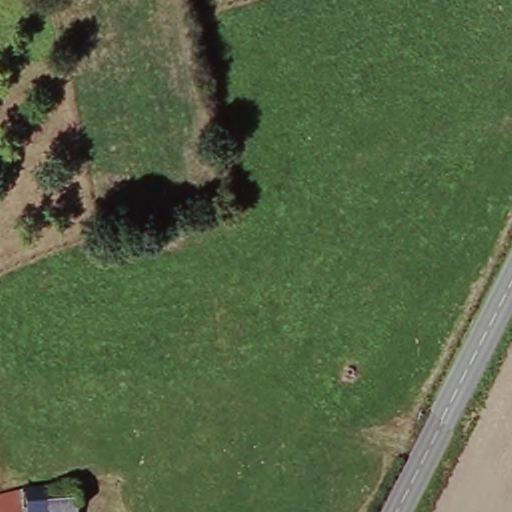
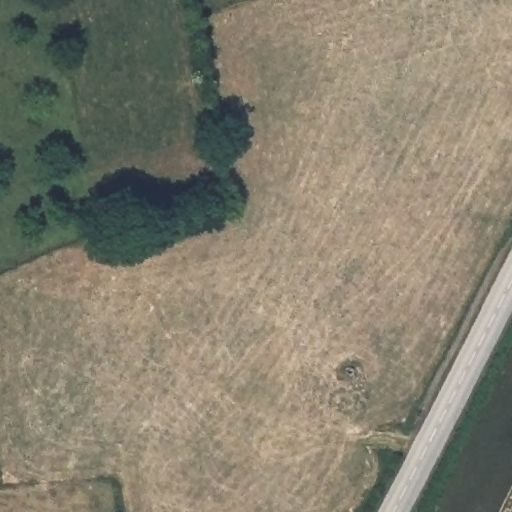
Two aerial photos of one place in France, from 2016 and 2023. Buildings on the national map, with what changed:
unchanged [(75,512),(0,512),(0,506),(19,501),(19,496),(73,491),(75,512)]

